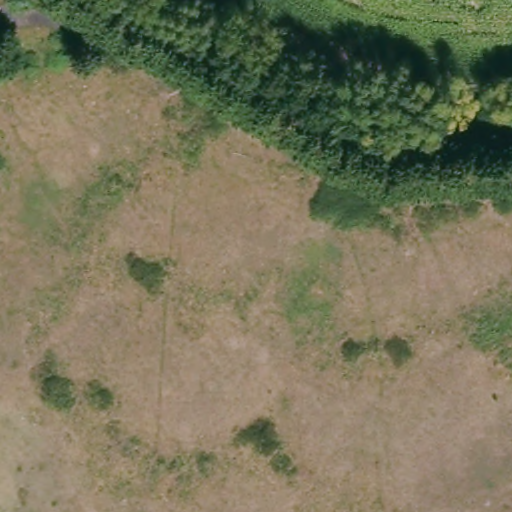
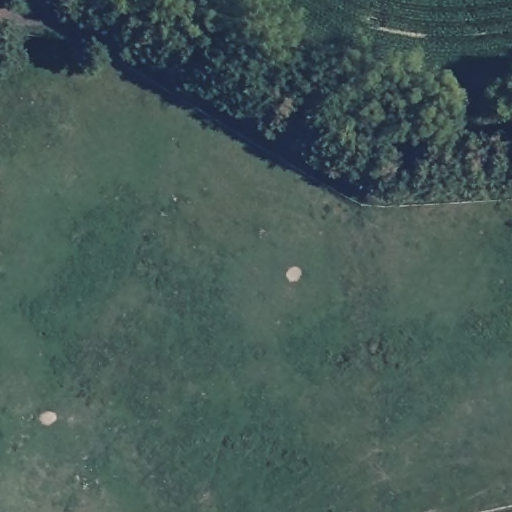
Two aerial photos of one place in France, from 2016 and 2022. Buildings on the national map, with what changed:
[]

